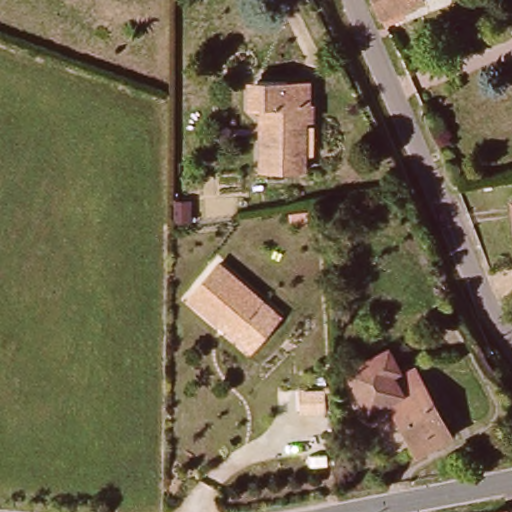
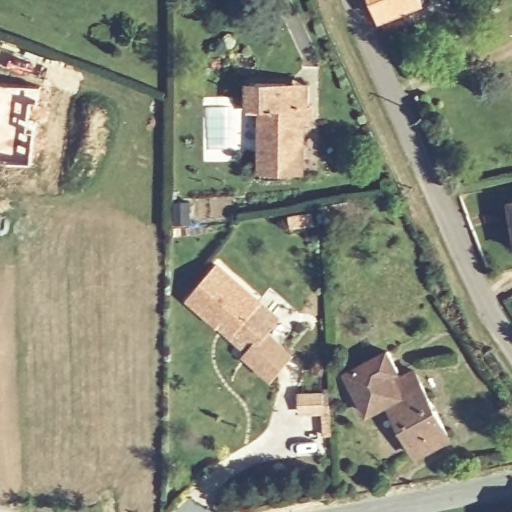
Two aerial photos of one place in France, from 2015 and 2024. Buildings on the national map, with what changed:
unchanged [(377,16),(371,0),(420,0),(422,7),(377,16)]
unchanged [(310,121),(303,121),(305,167),(262,168),(260,110),(246,110),(246,89),(254,80),(283,79),(305,79),(307,101),(310,101),(310,121)]
new [(40,86),(30,163),(0,160),(0,82),(40,86)]
unchanged [(197,208),(182,209),(182,190),(197,190),(197,208)]
unchanged [(360,194),(362,215),(337,218),(335,197),(360,194)]
unchanged [(512,204),(512,209),(511,204),(512,204)]
unchanged [(216,263),(258,301),(235,329),(224,320),(217,327),(184,299),(216,263)]
unchanged [(281,317),(249,353),(217,327),(224,320),(235,329),(258,301),(281,317)]
new [(249,353),(269,331),(296,354),(272,382),(243,355),(247,351),(249,353)]
unchanged [(403,379),(393,385),(396,390),(418,379),(453,443),(420,460),(392,408),(372,418),(352,381),(391,359),(399,372),(403,379)]
unchanged [(325,391),(325,388),(332,389),(333,413),(326,412),(300,414),(299,392),(325,391)]

